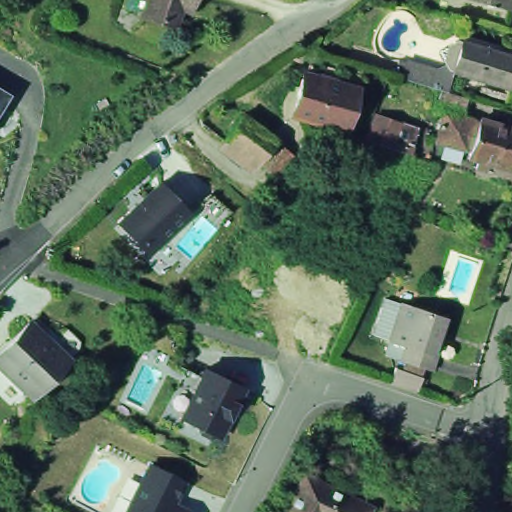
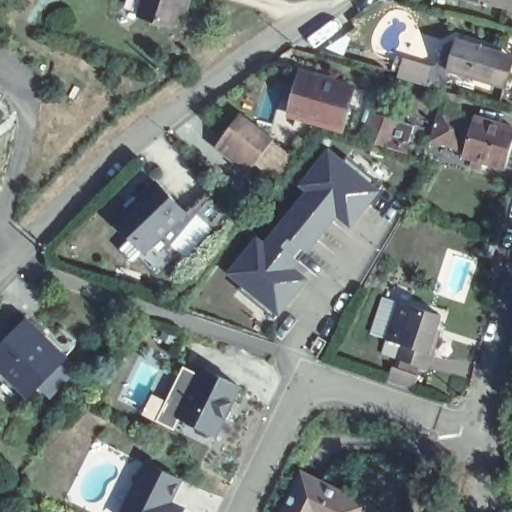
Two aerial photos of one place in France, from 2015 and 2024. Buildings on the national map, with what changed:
unchanged [(183,20),(155,10),(159,0),(203,0),(202,1),(200,5),(190,1),(183,20)]
unchanged [(479,0),(511,0),(509,8),(479,0)]
unchanged [(450,48),(455,50),(458,43),(512,59),(512,68),(510,75),(442,57),(445,50),(450,48)]
unchanged [(505,91),(449,75),(450,70),(445,69),(440,65),(442,57),(510,75),(505,91)]
unchanged [(405,61),(432,69),(427,85),(407,79),(400,76),(405,61)]
unchanged [(296,95),(303,71),(355,86),(343,128),(301,116),(290,114),(296,95)]
unchanged [(5,94),(18,102),(0,131),(0,91),(5,94)]
unchanged [(468,120),(444,112),(448,98),(473,105),(468,120)]
unchanged [(373,115),(386,120),(400,125),(389,149),(377,145),(375,144),(363,140),(373,115)]
unchanged [(248,120),(282,144),(265,167),(231,144),(248,120)]
unchanged [(441,151),(446,139),(444,138),(445,131),(448,132),(451,121),(484,130),(475,160),(441,151)]
unchanged [(512,135),(512,177),(493,172),(491,179),(481,176),(483,169),(473,167),(475,160),(484,130),(485,127),(512,135)]
new [(256,240),(265,246),(309,191),(300,185),(328,151),(342,162),(346,156),(382,185),(350,225),(336,213),(291,268),(305,280),(273,319),(237,290),(242,284),(228,273),(256,240)]
unchanged [(120,220),(160,180),(165,184),(190,209),(148,249),(126,226),(120,220)]
unchanged [(386,355),(391,340),(374,334),(386,296),(403,303),(404,302),(431,310),(445,315),(439,333),(444,335),(437,355),(433,369),(405,360),(386,355)]
unchanged [(31,321),(69,355),(33,395),(0,365),(0,353),(31,321)]
unchanged [(206,367),(246,391),(220,441),(180,420),(206,367)]
unchanged [(422,375),(417,391),(392,382),(391,382),(396,367),(400,368),(422,375)]
unchanged [(188,482),(180,504),(190,510),(189,512),(124,512),(150,462),(188,482)]
unchanged [(330,484),(318,512),(288,512),(308,473),(330,484)]
unchanged [(368,512),(318,512),(330,484),(372,505),(368,512)]

